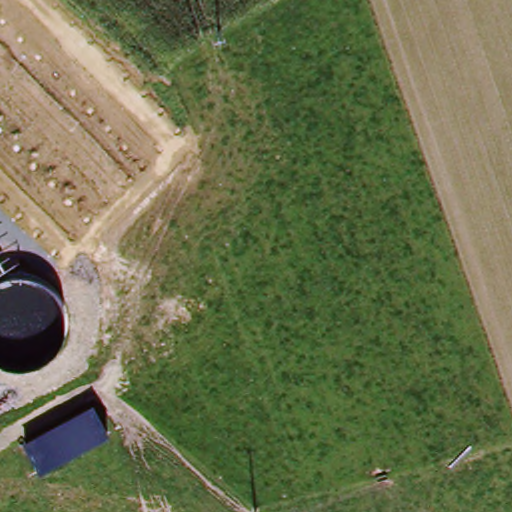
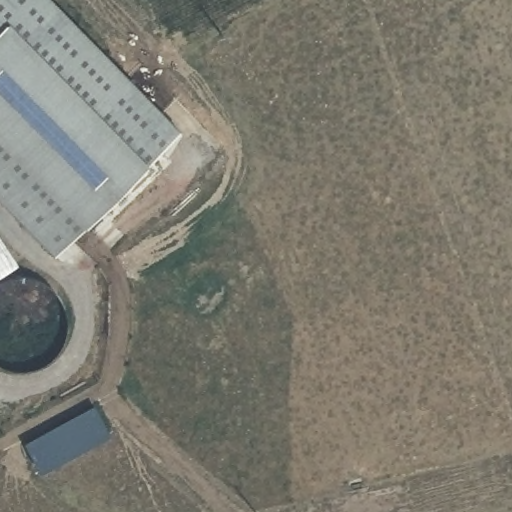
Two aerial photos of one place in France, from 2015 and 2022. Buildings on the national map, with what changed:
new [(53,0),(181,131),(88,221),(54,254),(0,200),(0,0),(53,0)]
new [(16,263),(6,270),(0,274),(0,239),(16,263)]
unchanged [(106,439),(39,475),(24,444),(94,409),(106,439)]

